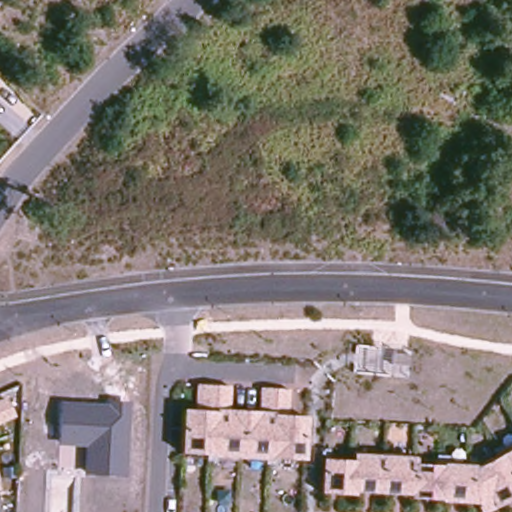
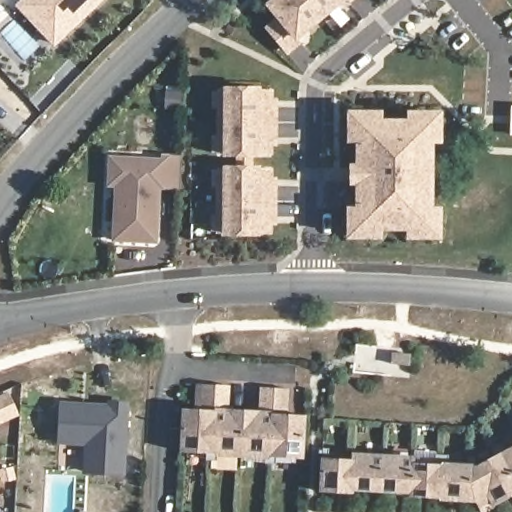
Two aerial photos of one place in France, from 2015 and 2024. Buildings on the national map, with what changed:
new [(59,43),(18,0),(105,0),(59,43)]
new [(285,18),(274,4),(279,0),(345,0),(300,37),(304,40),(292,50),(273,28),(285,18)]
new [(265,155),(219,154),(219,89),(265,90),(270,90),(270,105),(270,140),(270,155),(265,155)]
new [(447,237),(421,237),(421,228),(383,227),(383,236),(358,236),(358,211),(366,210),(366,223),(367,139),(358,139),(358,113),(384,113),(384,122),(422,122),(422,114),(448,114),(448,139),(440,140),(438,211),(447,211),(447,237)]
new [(160,154),(180,154),(179,187),(162,187),(158,243),(110,242),(114,187),(106,186),(109,155),(160,158),(160,154)]
new [(262,235),(218,234),(219,168),(264,168),(269,169),(269,184),(268,220),(268,234),(262,235)]
unchanged [(180,407),(194,408),(196,384),(229,385),(228,409),(258,411),(259,387),(288,389),(286,412),(306,413),(303,458),(177,451),(180,407)]
unchanged [(0,425),(0,402),(7,398),(16,416),(0,425)]
unchanged [(82,474),(85,445),(56,443),(60,402),(102,404),(101,401),(130,402),(126,477),(82,474)]
unchanged [(351,450),(415,454),(415,461),(475,464),(512,442),(512,495),(492,505),(495,508),(486,512),(479,512),(473,501),(405,498),(405,494),(317,491),(320,457),(350,458),(351,450)]
unchanged [(0,490),(0,483),(1,490),(0,490)]

